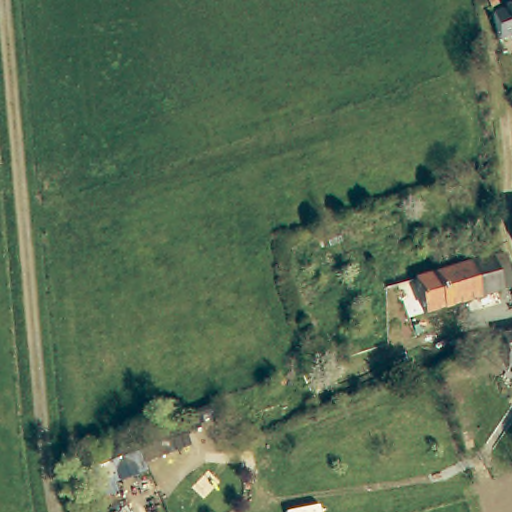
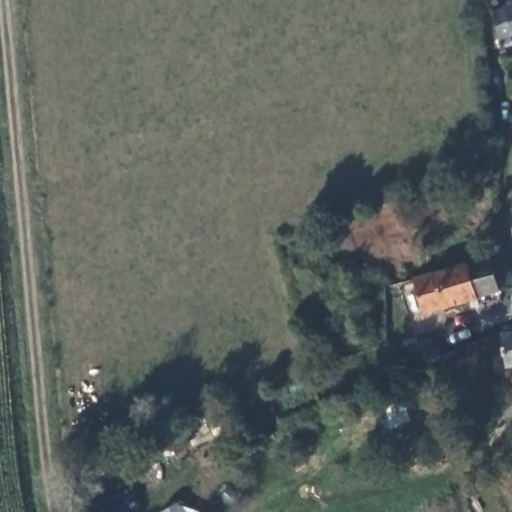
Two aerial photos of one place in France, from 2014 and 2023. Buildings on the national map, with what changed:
unchanged [(512,10),(512,41),(492,48),(487,19),(512,10)]
unchanged [(501,292),(501,296),(425,319),(413,280),(492,258),(501,292)]
unchanged [(512,335),(512,371),(503,372),(502,336),(512,335)]
unchanged [(91,459),(104,478),(89,488),(76,470),(91,459)]

